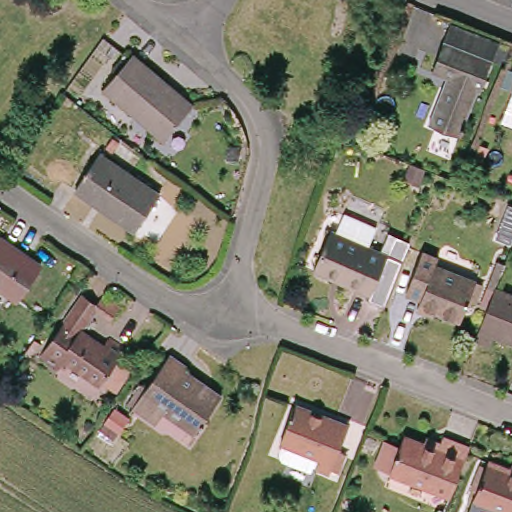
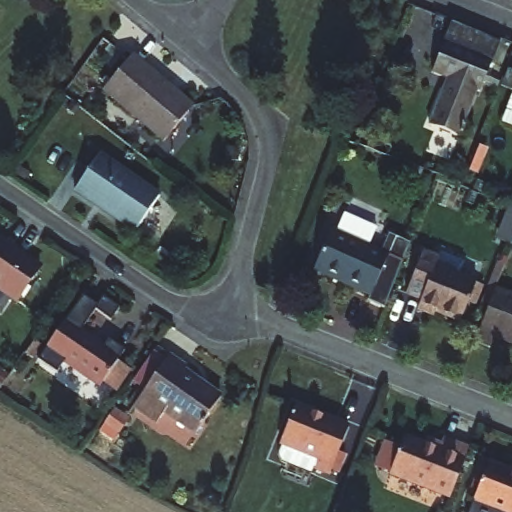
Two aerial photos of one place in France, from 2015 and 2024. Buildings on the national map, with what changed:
unchanged [(480,94),(477,93),(459,138),(429,127),(448,81),(432,75),(445,44),(492,63),(480,94)]
unchanged [(188,112),(163,142),(102,90),(133,57),(167,87),(193,108),(188,112)]
unchanged [(75,191),(99,156),(159,198),(135,232),(75,191)]
unchanged [(370,296),(314,272),(331,233),(335,234),(344,215),(377,230),(368,249),(388,258),(387,259),(402,264),(387,300),(372,294),(370,296)]
unchanged [(0,289),(0,242),(0,241),(39,268),(17,301),(0,289)]
unchanged [(416,313),(419,307),(421,300),(406,294),(422,255),(437,260),(435,267),(476,284),(484,287),(475,307),(469,304),(462,323),(436,314),(434,320),(416,313)]
unchanged [(490,352),(475,346),(495,295),(512,301),(512,349),(495,342),(490,352)]
unchanged [(116,394),(103,385),(101,386),(65,363),(59,371),(40,358),(80,297),(95,307),(103,297),(120,309),(111,323),(95,312),(80,333),(102,349),(107,342),(124,352),(118,362),(132,371),(116,394)]
unchanged [(169,357),(185,369),(182,372),(220,399),(196,434),(165,414),(157,424),(134,408),(145,390),(169,357)]
unchanged [(349,429),(330,475),(315,470),(320,461),(280,445),(295,407),(349,429)]
unchanged [(114,410),(130,420),(120,434),(104,424),(114,410)]
unchanged [(384,465),(391,446),(398,448),(404,434),(424,441),(427,434),(442,440),(444,435),(470,446),(467,454),(475,458),(469,473),(460,470),(450,495),(390,470),(390,468),(384,465)]
unchanged [(499,509),(472,499),(475,490),(470,489),(480,462),(485,464),(487,459),(512,469),(512,512),(499,512),(498,511),(499,509)]

